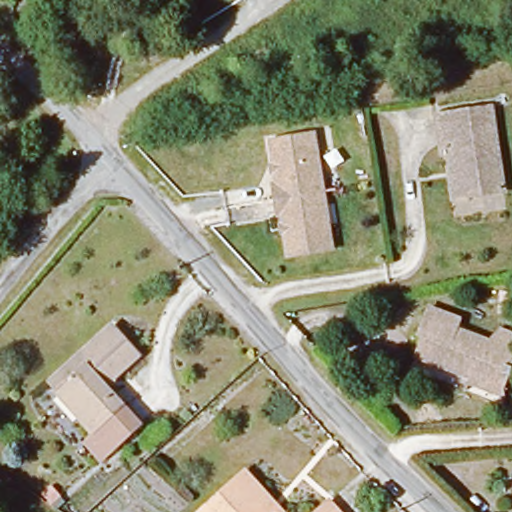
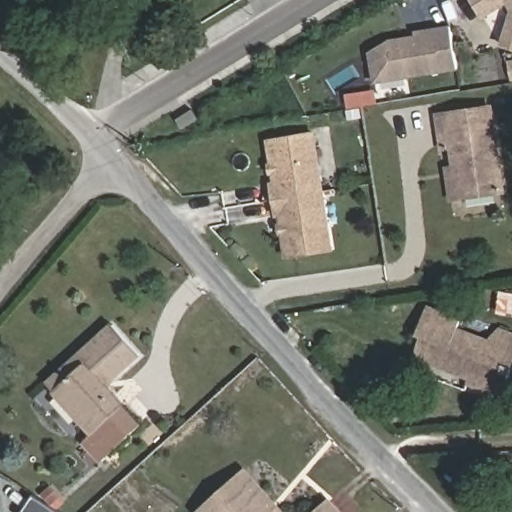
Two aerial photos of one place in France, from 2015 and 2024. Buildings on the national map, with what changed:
new [(507,2),(483,19),(473,0),(512,0),(512,9),(507,2)]
new [(503,46),(512,14),(512,48),(503,46)]
new [(451,25),(458,70),(373,85),(369,52),(390,39),(415,36),(415,30),(451,25)]
unchanged [(464,204),(460,174),(456,151),(447,152),(442,120),(474,115),(495,111),(497,127),(508,196),(464,204)]
demolished [(155,130),(143,132),(140,117),(152,115),(155,130)]
unchanged [(273,184),(277,183),(270,140),(315,132),(325,191),(275,200),(273,184)]
unchanged [(325,191),(335,250),(289,257),(282,215),(278,215),(275,200),(325,191)]
unchanged [(469,383),(413,361),(422,339),(417,337),(427,313),(462,326),(458,335),(488,346),(500,332),(511,336),(512,337),(512,375),(503,396),(501,403),(466,390),(469,383)]
unchanged [(110,453),(102,460),(85,441),(94,435),(55,392),(49,384),(78,357),(114,325),(140,354),(105,386),(125,407),(141,425),(110,453)]
unchanged [(127,475),(116,484),(110,476),(121,466),(127,475)]
unchanged [(237,478),(245,472),(278,509),(281,512),(200,512),(237,478)]
new [(35,496),(59,512),(25,512),(35,496)]
unchanged [(330,502),(339,512),(319,512),(330,502)]

